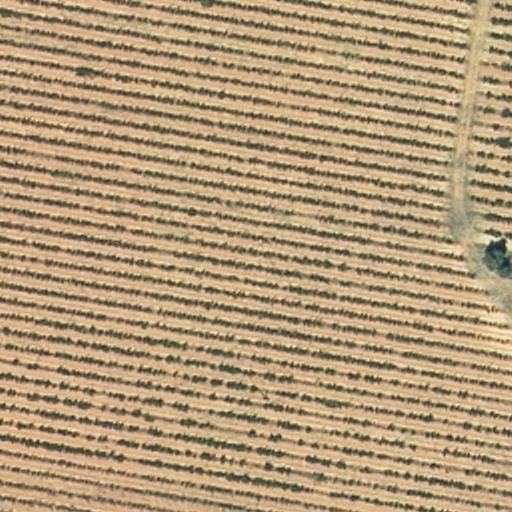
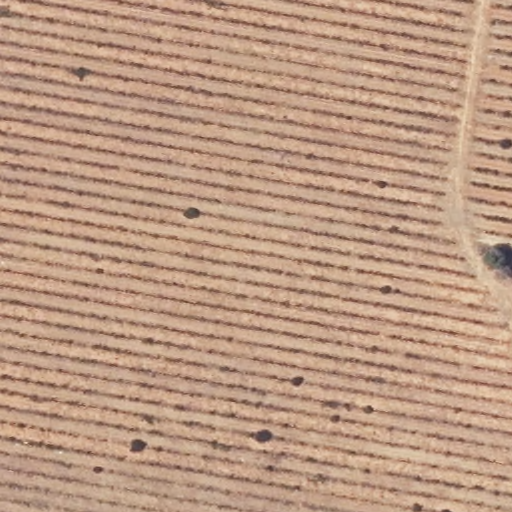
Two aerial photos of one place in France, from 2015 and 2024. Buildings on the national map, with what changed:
[]

